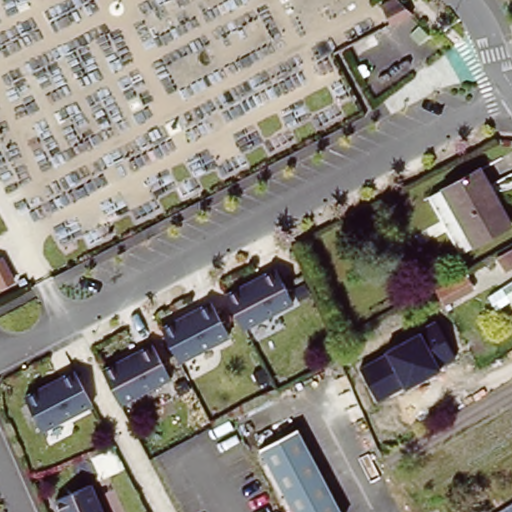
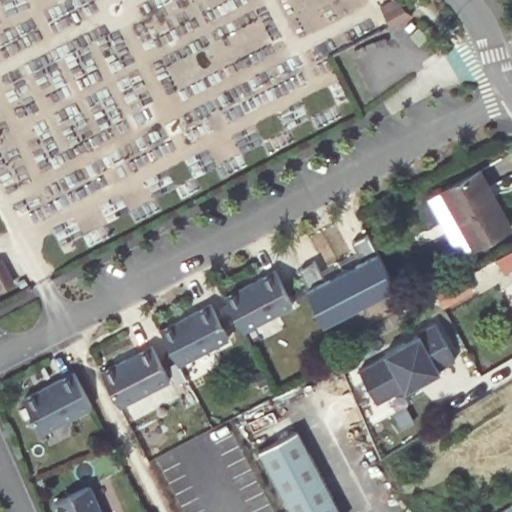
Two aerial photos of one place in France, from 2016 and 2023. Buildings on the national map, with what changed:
unchanged [(390,26),(379,6),(390,0),(397,0),(412,15),(390,26)]
unchanged [(482,173),(512,231),(475,251),(445,192),(482,173)]
new [(343,272),(362,262),(353,242),(368,235),(396,287),(361,306),(343,272)]
new [(300,270),(316,262),(325,281),(343,272),(361,306),(324,325),(300,270)]
unchanged [(505,272),(512,268),(512,283),(505,272)]
unchanged [(273,270),(290,303),(241,329),(223,296),(273,270)]
unchanged [(510,298),(512,297),(512,303),(510,298)]
unchanged [(207,308),(225,341),(175,367),(158,333),(207,308)]
unchanged [(360,368),(387,353),(386,351),(422,332),(424,335),(438,327),(455,358),(439,367),(442,371),(406,390),(404,387),(378,401),(360,368)]
unchanged [(148,350),(167,383),(117,410),(99,376),(148,350)]
unchanged [(39,432),(22,398),(72,372),(89,407),(39,432)]
unchanged [(332,512),(286,512),(257,455),(293,436),(332,512)]
unchanged [(50,503),(85,488),(96,512),(53,512),(50,503)]

